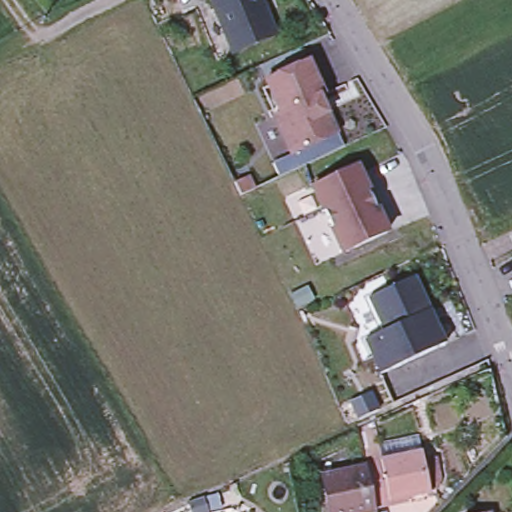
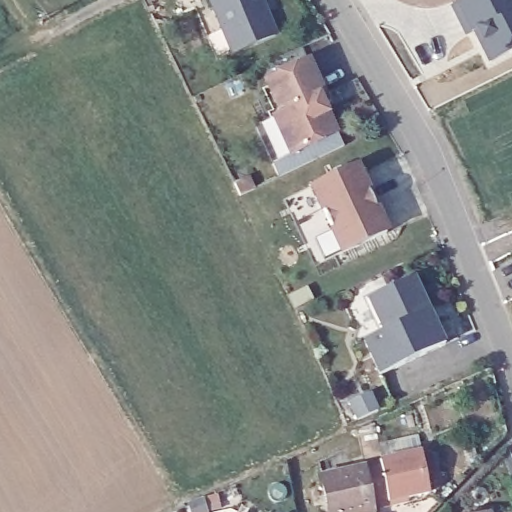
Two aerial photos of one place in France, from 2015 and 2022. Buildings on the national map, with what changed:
unchanged [(261,39),(240,48),(220,0),(269,0),(282,30),(261,39)]
new [(488,65),(473,30),(469,32),(454,2),(459,0),(512,0),(512,52),(488,65)]
unchanged [(311,55),(326,89),(321,91),(329,107),(339,129),(308,142),(294,150),(276,111),(282,108),(267,75),(273,73),(311,55)]
unchanged [(331,176),(364,161),(379,194),(376,195),(380,202),(382,201),(395,227),(365,241),(351,247),(320,181),(331,176)]
unchanged [(239,195),(237,195),(232,184),(246,176),(252,189),(239,195)]
unchanged [(437,315),(448,339),(417,353),(383,369),(367,335),(387,326),(371,293),(383,287),(417,271),(432,305),(437,315)]
new [(382,408),(355,420),(348,400),(373,390),(382,408)]
unchanged [(358,429),(372,426),(375,442),(377,446),(380,461),(386,501),(372,504),(366,468),(358,429)]
unchanged [(428,494),(386,501),(380,461),(420,453),(428,494)]
unchanged [(372,504),(374,512),(327,512),(320,477),(366,468),(372,504)]

